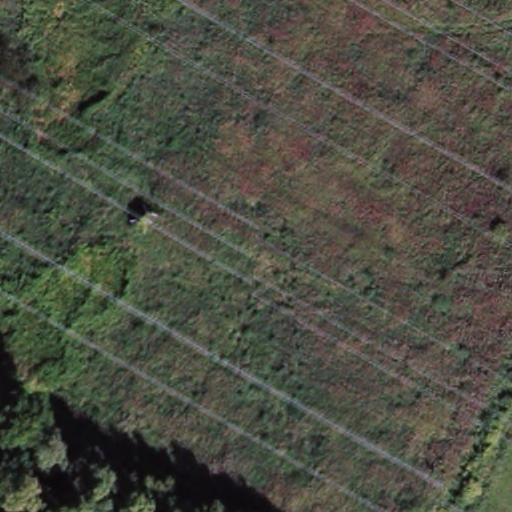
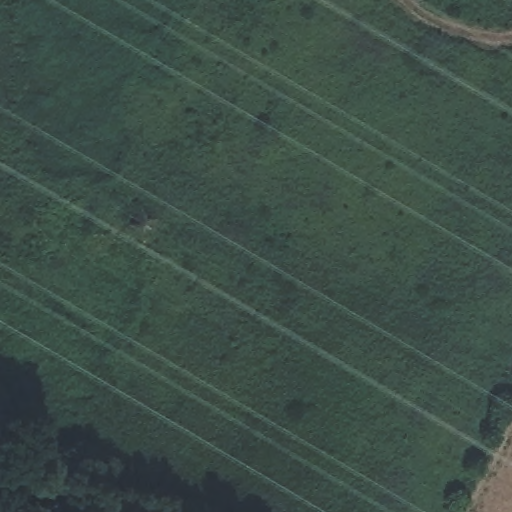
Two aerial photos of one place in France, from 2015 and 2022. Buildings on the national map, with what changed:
unchanged [(151,217),(141,230),(131,221),(140,210),(151,217)]

